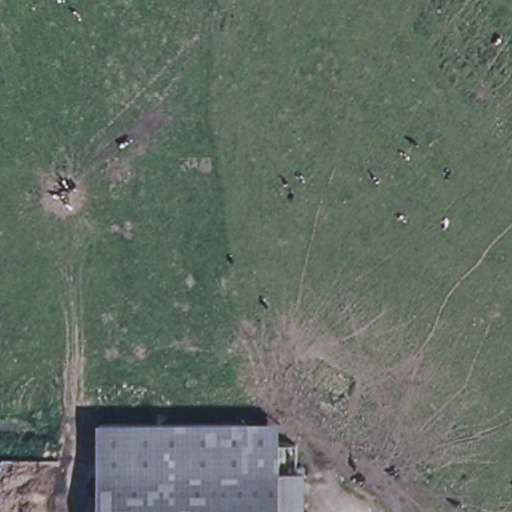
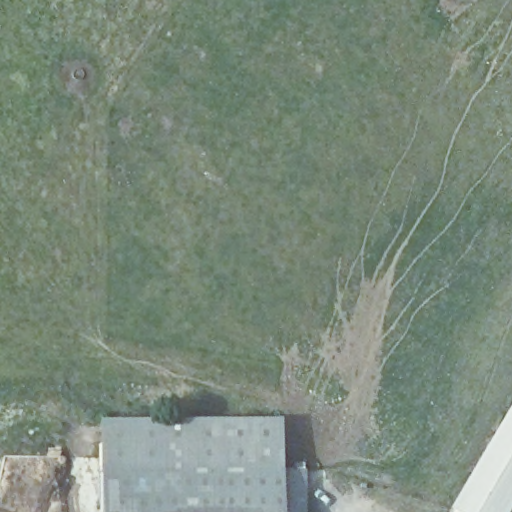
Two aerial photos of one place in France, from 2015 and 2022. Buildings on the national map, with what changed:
new [(460,512),(453,507),(512,406),(512,511),(512,512),(460,512)]
unchanged [(278,420),(278,470),(278,512),(97,512),(97,420),(278,420)]
unchanged [(302,470),(303,512),(278,512),(278,470),(302,470)]

